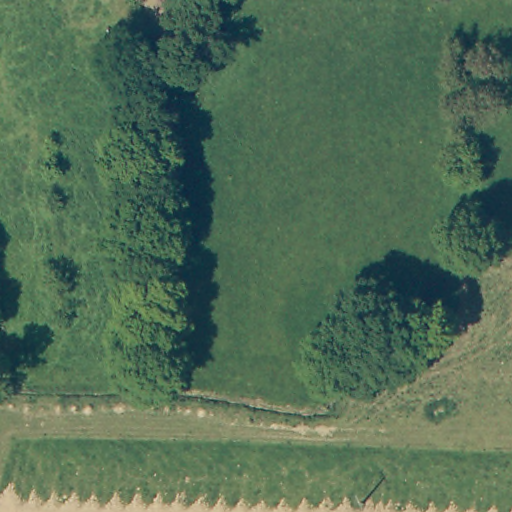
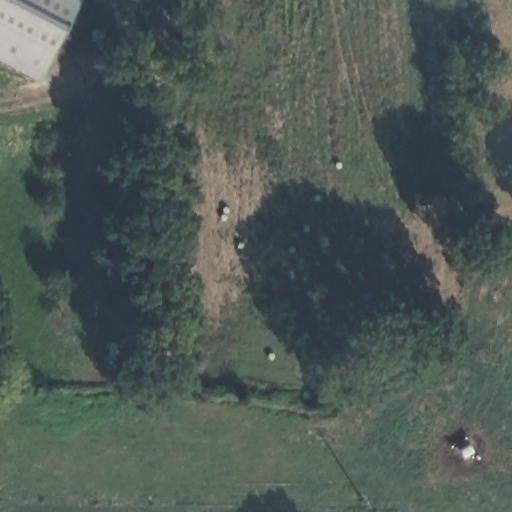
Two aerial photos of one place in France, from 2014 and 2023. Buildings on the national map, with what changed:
new [(0,61),(0,0),(81,0),(38,81),(0,61)]

